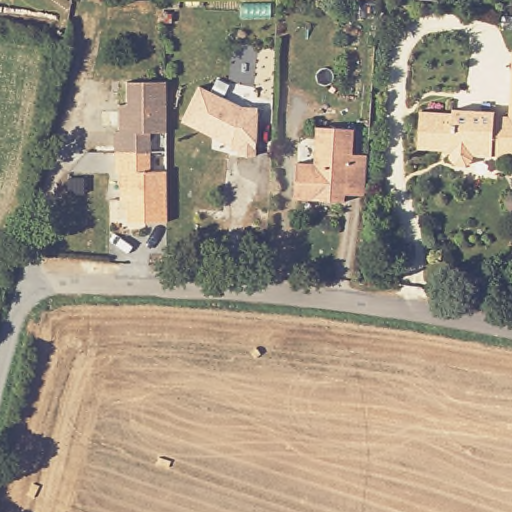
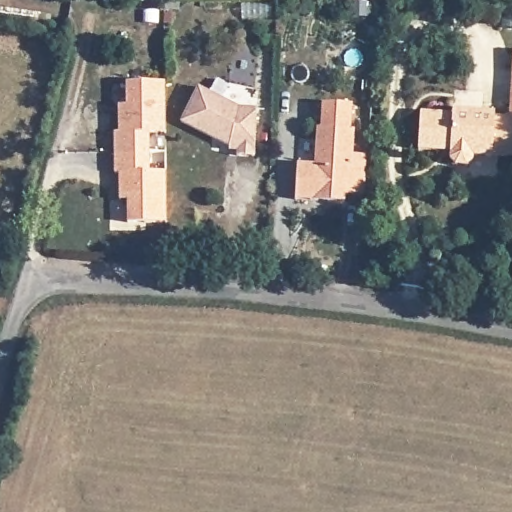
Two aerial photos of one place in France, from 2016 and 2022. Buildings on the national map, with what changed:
unchanged [(146,129),(145,168),(163,169),(164,219),(125,219),(125,197),(115,197),(115,170),(111,170),(111,129),(115,129),(115,102),(122,102),(122,79),(161,79),(162,130),(146,129)]
unchanged [(251,156),(234,156),(234,146),(227,145),(177,122),(195,87),(237,108),(254,108),(251,156)]
unchanged [(505,151),(504,158),(495,158),(495,157),(476,157),(474,165),(458,165),(453,158),(453,148),(420,147),(422,109),(453,111),(453,107),(497,109),(497,114),(512,114),(512,120),(510,152),(505,151)]
unchanged [(339,195),(338,202),(290,199),(291,162),(310,163),(312,127),(350,129),(348,155),(364,155),(362,171),(360,196),(339,195)]

